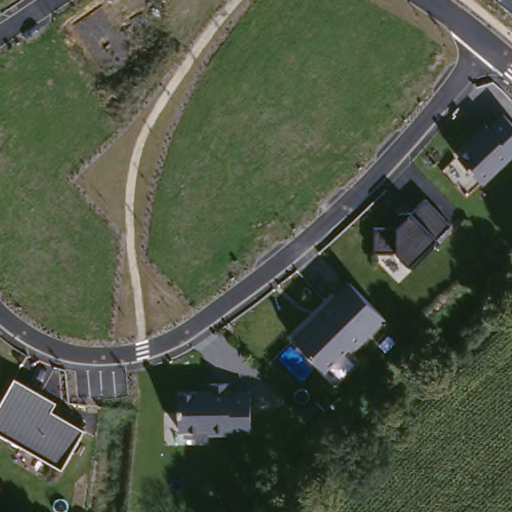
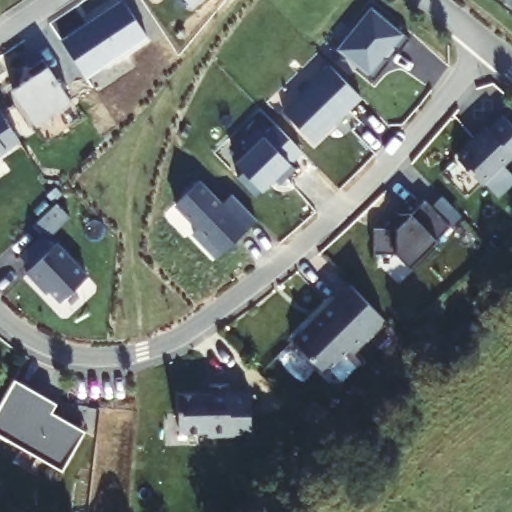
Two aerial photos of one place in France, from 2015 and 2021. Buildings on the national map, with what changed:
new [(188,0),(202,0),(194,7),(188,0)]
unchanged [(512,0),(512,13),(495,0),(512,0)]
new [(374,9),(413,41),(402,54),(397,49),(388,60),(392,64),(377,82),(340,52),(374,9)]
new [(37,80),(32,74),(46,64),(72,102),(36,126),(15,95),(37,80)]
new [(333,67),(363,99),(317,144),(286,113),(333,67)]
new [(20,141),(0,155),(0,112),(20,141)]
unchanged [(512,125),(512,158),(480,182),(452,152),(503,112),(512,125)]
new [(252,154),(245,147),(260,132),(267,139),(279,127),(304,153),(292,165),(298,170),(281,186),(273,177),(268,182),(271,185),(258,198),(240,180),(247,174),(239,166),(252,154)]
new [(201,183),(223,206),(234,196),(258,221),(219,259),(195,234),(200,229),(177,206),(201,183)]
unchanged [(394,229),(424,202),(449,226),(409,266),(397,253),(371,252),(375,227),(394,229)]
new [(42,238),(52,249),(56,245),(87,278),(59,304),(43,287),(41,290),(26,273),(30,270),(20,258),(42,238)]
unchanged [(347,285),(382,318),(347,355),(341,354),(324,368),(292,338),(347,285)]
unchanged [(0,436),(0,403),(13,378),(54,400),(50,412),(81,430),(59,467),(0,436)]
unchanged [(209,392),(210,383),(228,383),(228,391),(249,391),(250,432),(205,435),(204,431),(179,432),(177,392),(209,392)]

